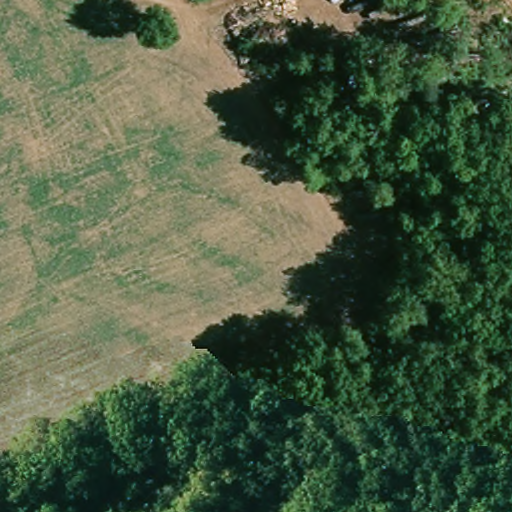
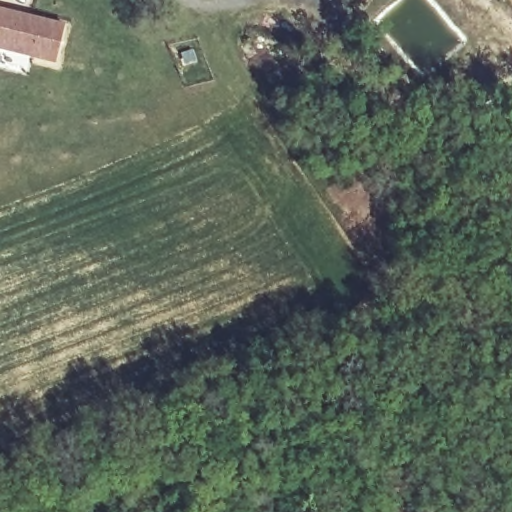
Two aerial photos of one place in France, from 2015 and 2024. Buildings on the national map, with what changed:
new [(64,24),(53,65),(0,51),(0,9),(64,24)]

